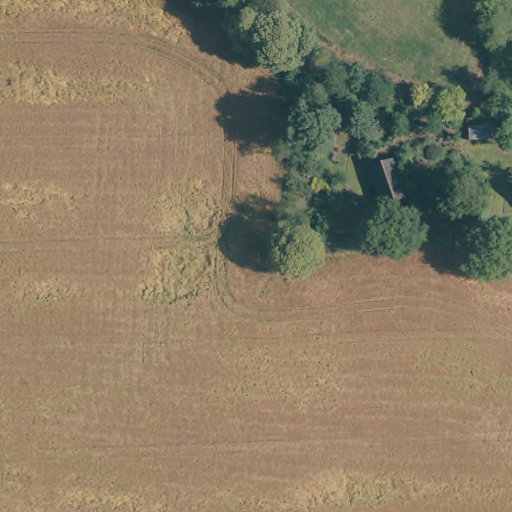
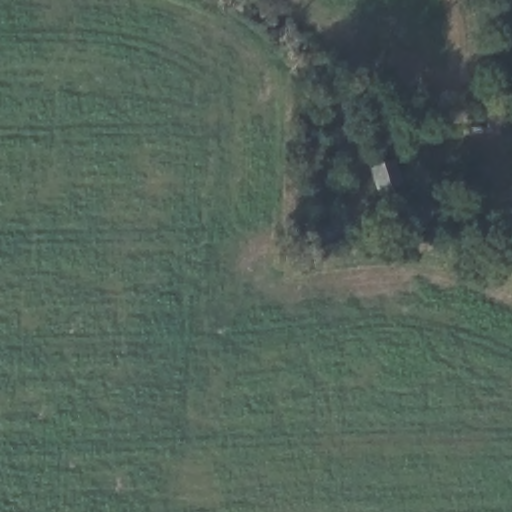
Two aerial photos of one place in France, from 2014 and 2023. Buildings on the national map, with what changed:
unchanged [(375,225),(370,182),(401,179),(406,221),(375,225)]
unchanged [(512,251),(512,259),(508,257),(512,251)]

